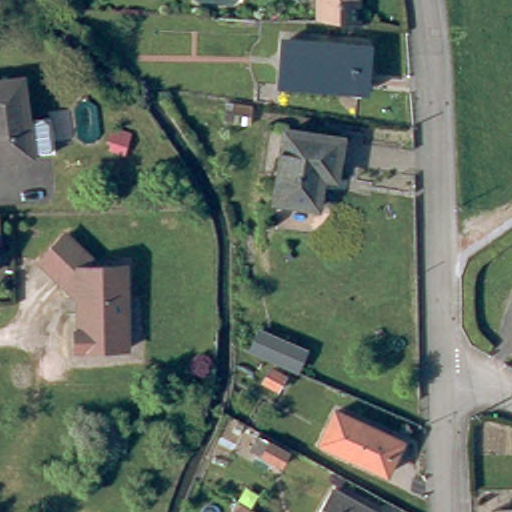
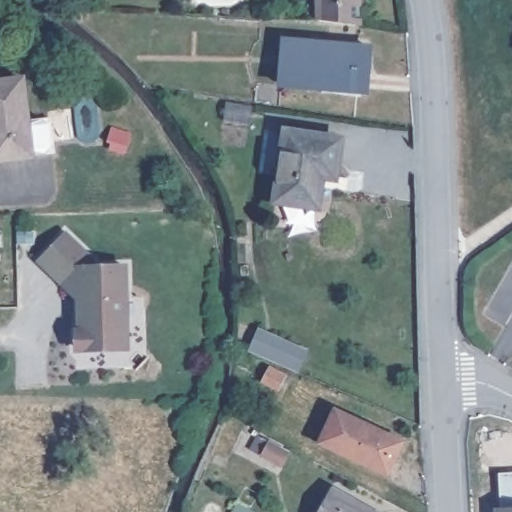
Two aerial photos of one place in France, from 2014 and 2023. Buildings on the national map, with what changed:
unchanged [(318,19),(318,0),(362,0),(362,24),(318,19)]
unchanged [(277,84),(280,39),(367,46),(364,91),(277,84)]
unchanged [(45,122),(50,157),(0,163),(0,85),(15,83),(20,125),(45,122)]
unchanged [(282,134),(339,143),(333,184),(320,182),(315,212),(272,205),(282,134)]
unchanged [(85,258),(85,266),(119,266),(120,298),(117,298),(117,319),(120,319),(121,349),(73,350),(69,346),(68,335),(72,331),(72,311),(75,312),(75,298),(72,298),(33,260),(59,233),(85,258)]
unchanged [(253,329),(296,349),(288,370),(244,350),(253,329)]
unchanged [(277,376),(270,388),(257,380),(265,368),(277,376)]
unchanged [(410,446),(395,478),(328,446),(343,415),(410,446)]
unchanged [(290,452),(282,465),(265,454),(272,442),(290,452)]
unchanged [(381,512),(314,512),(330,484),(381,512)]

